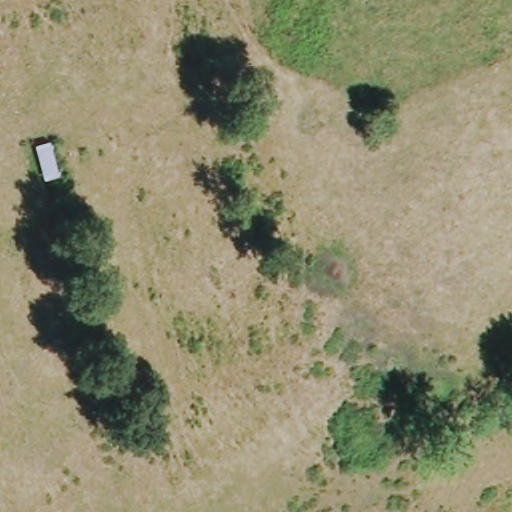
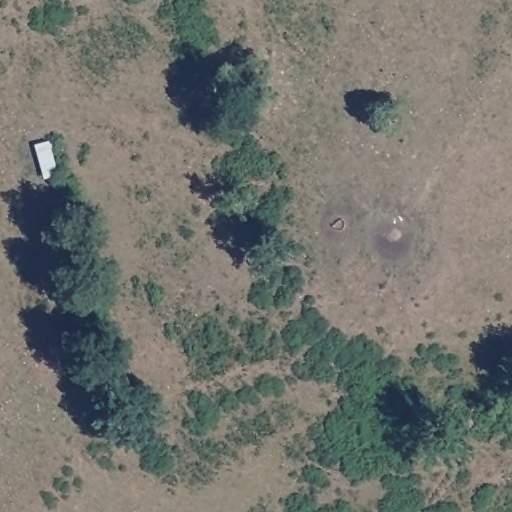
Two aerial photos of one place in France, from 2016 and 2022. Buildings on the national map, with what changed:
unchanged [(38,148),(50,144),(58,175),(46,178),(38,148)]

